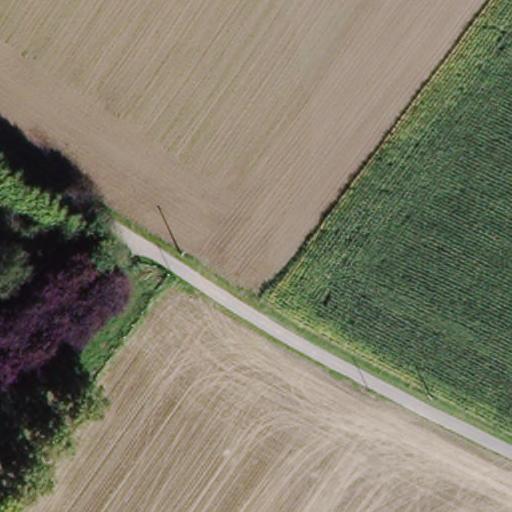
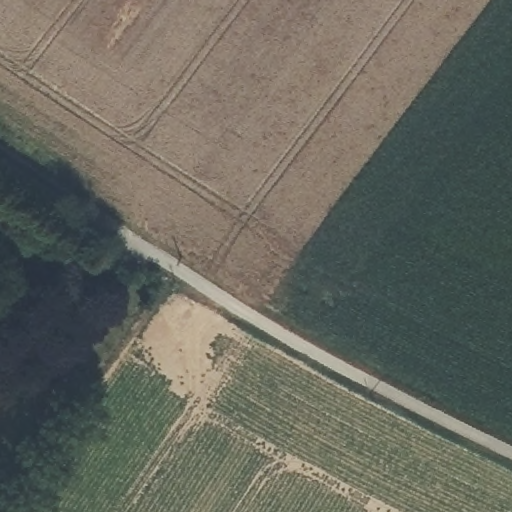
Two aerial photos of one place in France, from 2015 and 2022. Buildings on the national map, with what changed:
[]

